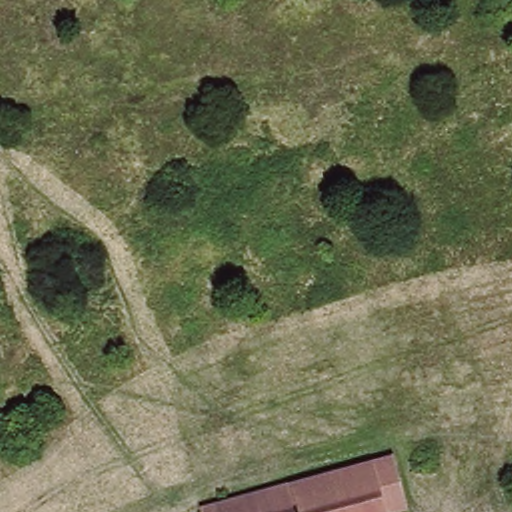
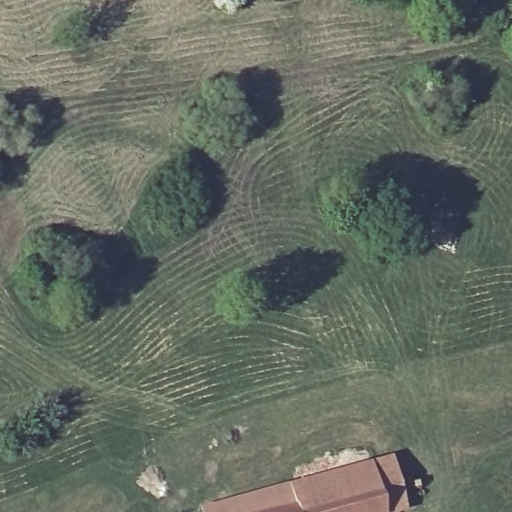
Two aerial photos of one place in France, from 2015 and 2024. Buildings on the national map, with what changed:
unchanged [(389,455),(404,508),(387,512),(383,512),(369,460),(389,455)]
unchanged [(199,507),(369,460),(383,512),(200,512),(199,507)]

